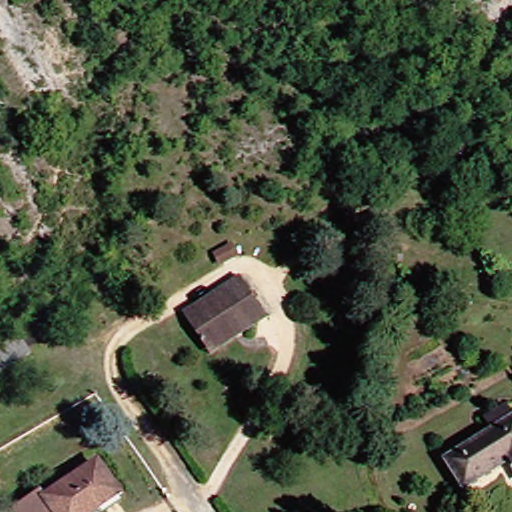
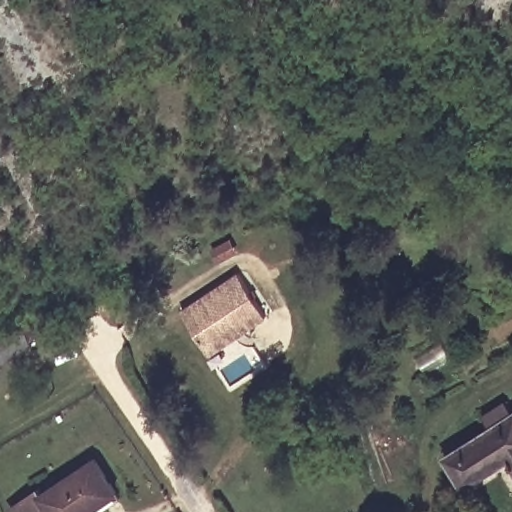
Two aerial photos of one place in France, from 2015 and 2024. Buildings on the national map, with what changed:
unchanged [(207,350),(183,315),(238,277),(266,317),(252,327),(212,356),(207,350)]
unchanged [(31,350),(0,367),(0,344),(20,332),(31,350)]
unchanged [(467,488),(448,456),(512,418),(512,465),(511,462),(467,488)]
unchanged [(98,512),(19,512),(16,508),(40,490),(46,497),(95,463),(119,497),(98,512)]

